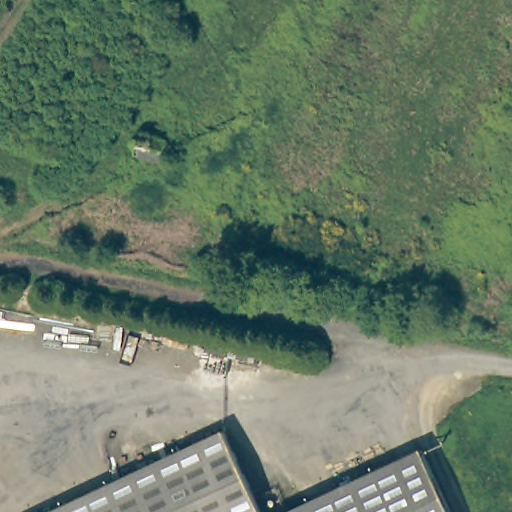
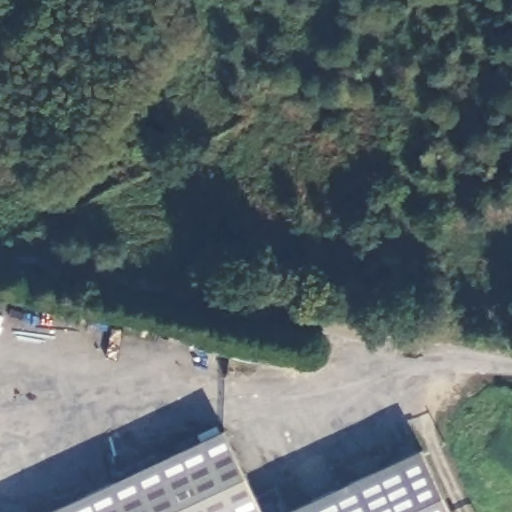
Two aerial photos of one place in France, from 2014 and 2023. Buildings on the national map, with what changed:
unchanged [(146,108),(173,114),(162,160),(134,154),(146,108)]
unchanged [(227,278),(206,273),(211,252),(232,257),(227,278)]
unchanged [(226,429),(265,512),(49,512),(226,429)]
unchanged [(424,448),(452,512),(287,512),(424,448)]

